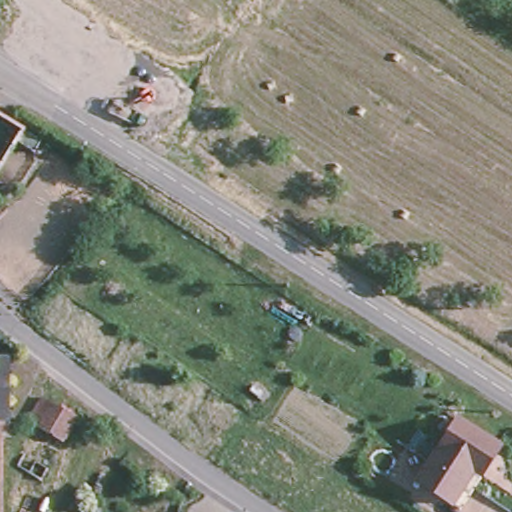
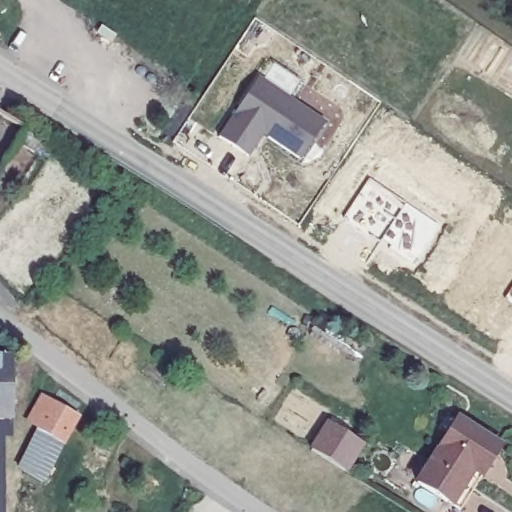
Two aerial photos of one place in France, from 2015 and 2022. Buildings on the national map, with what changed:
new [(326,121),(300,161),(264,136),(248,158),(217,138),(258,77),(326,121)]
unchanged [(20,129),(36,140),(29,152),(13,141),(0,161),(0,116),(20,129)]
unchanged [(3,360),(4,433),(0,437),(0,360),(3,360)]
unchanged [(36,427),(38,426),(28,419),(41,397),(76,418),(63,443),(36,427)]
unchanged [(457,417),(499,443),(459,507),(417,481),(457,417)]

